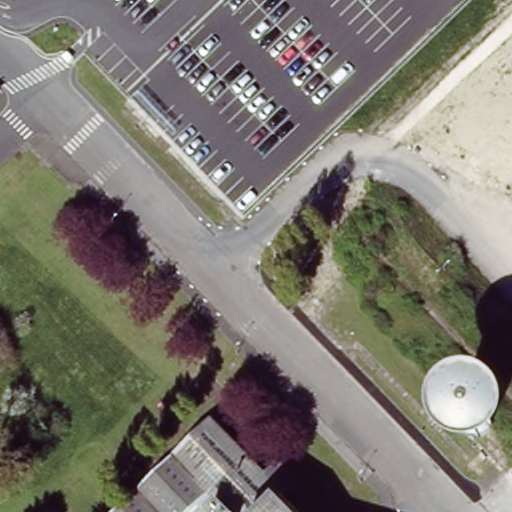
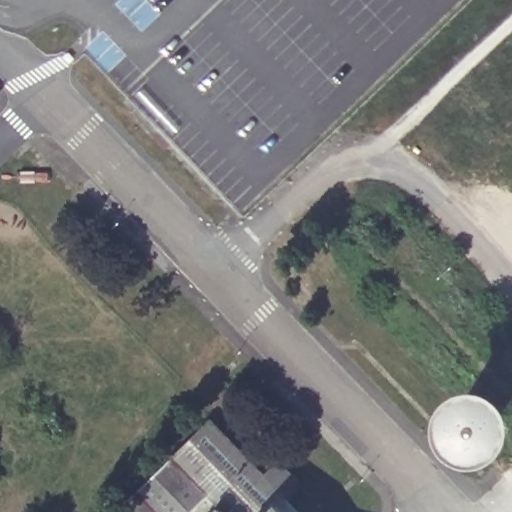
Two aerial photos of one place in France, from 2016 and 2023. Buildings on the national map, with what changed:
unchanged [(210,498),(196,512),(121,512),(211,426),(264,481),(279,467),(297,486),(276,507),(281,512),(223,512),(210,498)]

